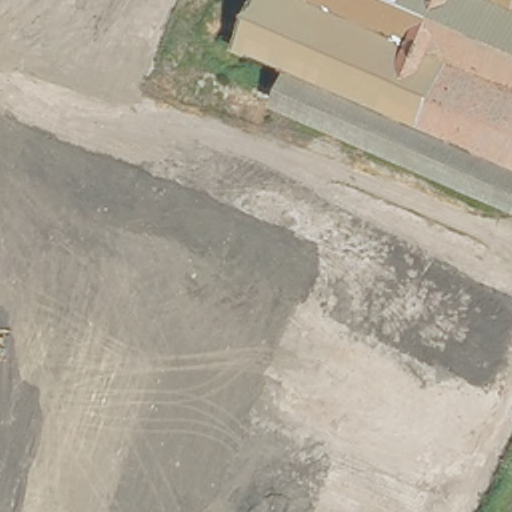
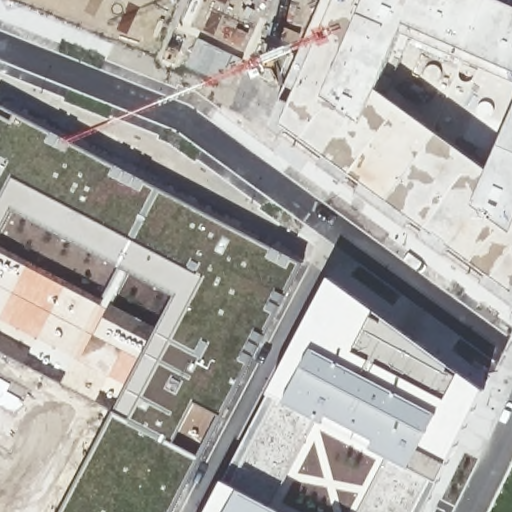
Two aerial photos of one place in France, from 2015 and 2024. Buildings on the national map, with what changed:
demolished [(287,69),(235,47),(255,0),(512,0),(512,210),(272,106),(287,69)]
new [(324,0),(512,0),(512,303),(270,128),(324,0)]
new [(0,355),(0,249),(157,329),(175,295),(12,209),(0,234),(0,105),(301,263),(173,512),(59,512),(113,412),(0,355)]
new [(269,393),(329,277),(484,389),(438,481),(422,512),(208,512),(224,480),(269,393)]

